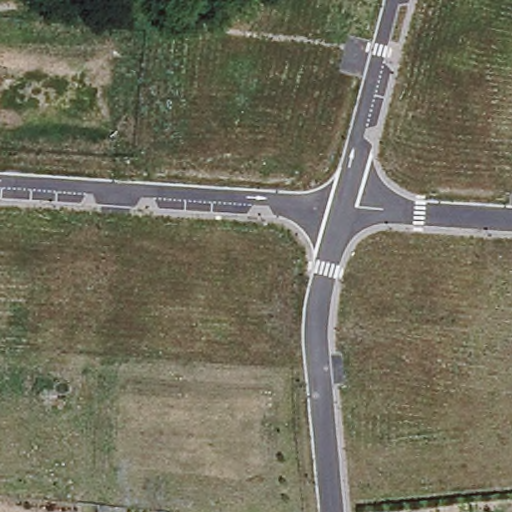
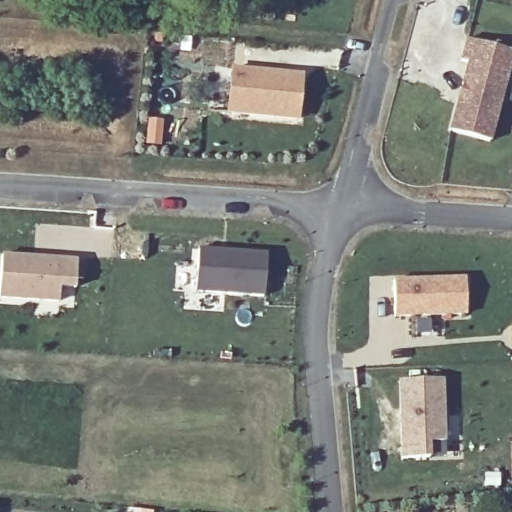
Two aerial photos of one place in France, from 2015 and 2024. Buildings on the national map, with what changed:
new [(512,51),(512,63),(492,143),(450,131),(467,64),(460,62),(465,40),(512,51)]
new [(233,70),(303,78),(299,119),(229,111),(233,70)]
new [(200,250),(269,255),(265,298),(197,293),(200,250)]
new [(76,260),(75,288),(59,287),(58,300),(0,297),(0,283),(2,256),(76,260)]
new [(462,317),(389,315),(390,280),(463,282),(462,317)]
new [(444,380),(448,441),(432,442),(433,457),(406,458),(402,382),(444,380)]

